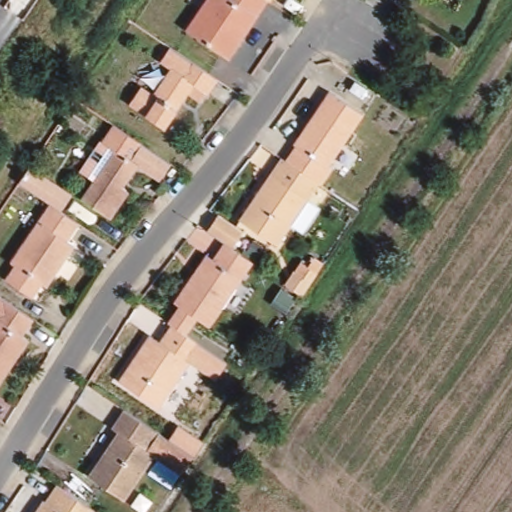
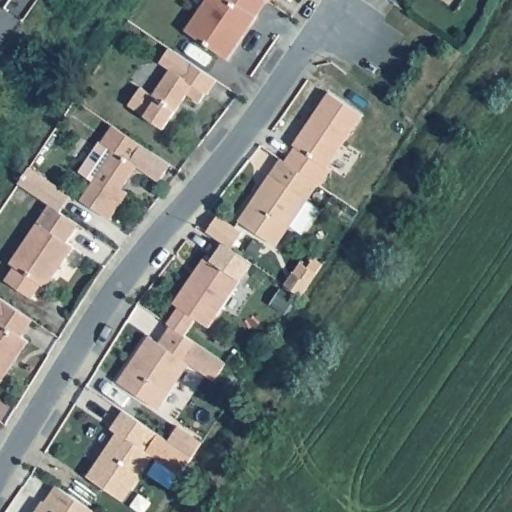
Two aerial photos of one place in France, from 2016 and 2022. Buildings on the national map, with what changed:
unchanged [(223,59),(181,31),(202,0),(262,0),(223,59)]
unchanged [(264,1),(263,0),(265,0),(264,1)]
unchanged [(148,95),(165,69),(155,62),(165,47),(213,79),(203,94),(201,93),(195,102),(182,93),(159,128),(124,105),(136,87),(148,95)]
unchanged [(281,161),(291,145),(289,144),(324,91),(358,114),(323,166),(327,168),(316,184),(314,183),(281,161)]
unchanged [(137,149),(127,165),(133,169),(117,193),(124,196),(106,223),(77,204),(109,156),(96,147),(108,130),(137,149)]
unchanged [(298,234),(286,225),(272,245),(235,220),(277,158),(281,161),(314,183),(302,200),(315,209),(298,234)]
unchanged [(48,206),(75,224),(63,242),(70,246),(43,288),(38,285),(29,298),(2,280),(11,266),(7,263),(46,205),(48,206)]
unchanged [(244,259),(249,262),(206,327),(192,318),(181,334),(167,325),(164,323),(175,306),(170,302),(202,255),(209,260),(220,243),(244,259)]
unchanged [(297,272),(304,263),(311,267),(317,258),(326,264),(320,272),(319,273),(313,282),(304,296),(287,285),(297,271),(297,272)]
unchanged [(1,304),(29,324),(30,324),(18,341),(25,345),(0,381),(0,303),(1,304)]
unchanged [(181,334),(223,362),(211,379),(186,362),(155,408),(115,381),(146,335),(156,342),(167,325),(181,334)]
unchanged [(150,455),(120,499),(85,476),(114,432),(108,428),(120,410),(156,434),(165,440),(175,425),(200,442),(190,457),(189,456),(179,473),(150,455)]
unchanged [(54,485),(91,510),(90,512),(33,512),(40,500),(42,502),(54,485)]

